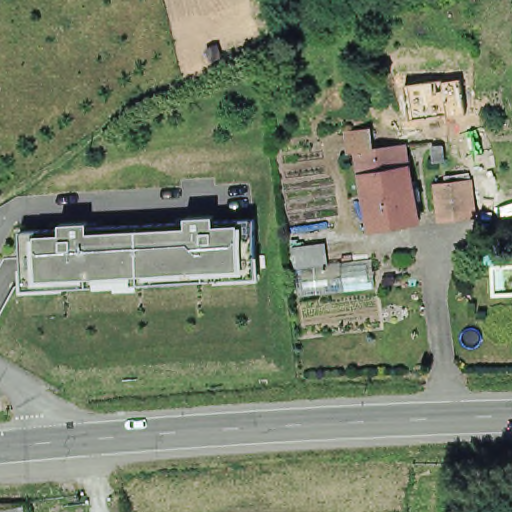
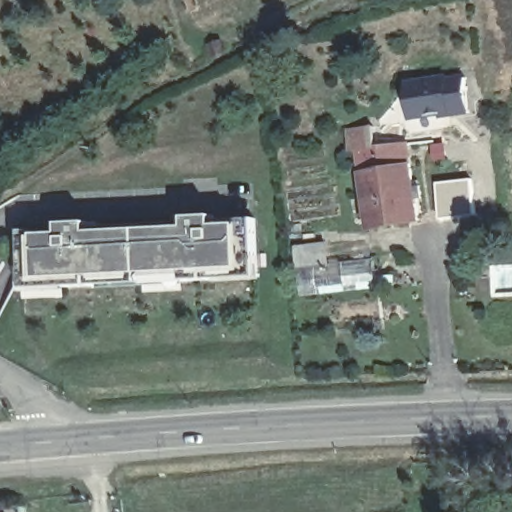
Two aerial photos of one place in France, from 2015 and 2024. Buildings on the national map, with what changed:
new [(471,112),(442,118),(441,115),(412,121),(407,80),(450,72),(451,76),(465,75),(471,112)]
unchanged [(412,163),(422,218),(374,225),(365,170),(362,147),(352,149),(350,127),(376,124),(379,145),(401,142),(402,156),(412,155),(412,163)]
unchanged [(441,185),(440,178),(456,175),(475,173),(479,206),(461,210),(445,211),(441,185)]
unchanged [(58,225),(58,220),(90,217),(90,224),(186,219),(186,213),(259,210),(262,277),(72,288),(72,290),(24,292),(22,229),(58,225)]
unchanged [(373,285),(297,295),(293,266),(291,252),(290,245),(321,240),(322,247),(324,262),(370,256),(373,285)]

